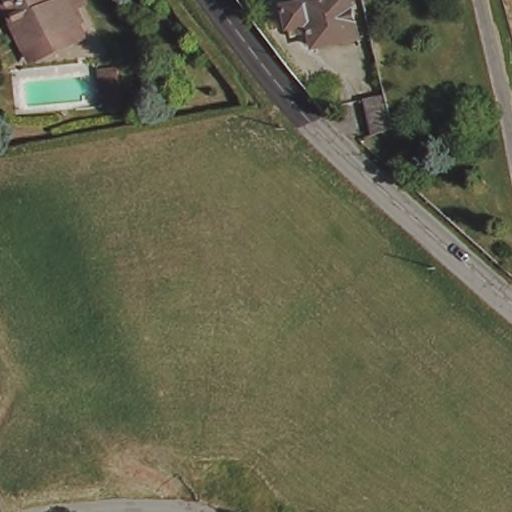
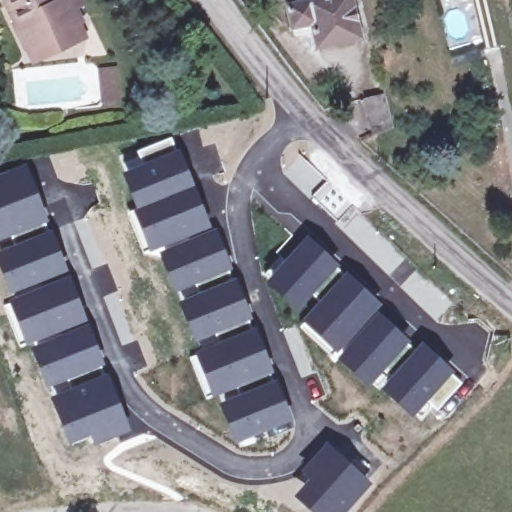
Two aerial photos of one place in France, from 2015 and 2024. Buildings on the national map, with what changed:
unchanged [(24,36),(17,35),(10,17),(12,11),(7,0),(67,0),(71,9),(77,22),(28,45),(24,36)]
unchanged [(302,20),(297,0),(360,0),(365,34),(327,39),(321,17),(302,20)]
unchanged [(118,59),(121,91),(102,92),(98,62),(118,59)]
unchanged [(397,125),(378,132),(371,97),(390,92),(397,125)]
new [(140,162),(134,150),(170,136),(175,148),(178,147),(211,229),(156,249),(147,252),(135,221),(120,172),(140,162)]
new [(335,220),(308,197),(283,173),(298,155),(325,179),(351,204),(335,220)]
new [(48,221),(0,239),(0,171),(25,161),(48,221)]
new [(211,229),(215,227),(230,269),(171,291),(156,249),(211,229)]
new [(67,271),(39,281),(8,293),(0,271),(0,249),(50,229),(67,271)]
new [(305,233),(338,264),(293,311),(263,281),(305,233)]
new [(345,270),(382,303),(376,310),(333,356),(298,320),(345,270)]
new [(40,286),(39,281),(67,271),(87,321),(28,345),(25,346),(6,300),(40,286)]
new [(235,277),(251,318),(193,341),(176,301),(235,277)]
new [(115,291),(135,341),(121,346),(101,297),(115,291)]
new [(376,310),(410,340),(388,363),(365,385),(333,356),(376,310)]
new [(87,321),(102,366),(45,387),(28,345),(87,321)]
new [(255,326),(273,372),(210,397),(191,352),(255,326)]
new [(421,340),(463,381),(436,411),(427,402),(412,418),(378,388),(421,340)]
new [(107,372),(131,431),(91,446),(87,437),(68,446),(48,396),(107,372)]
new [(275,378),(293,422),(232,445),(216,403),(275,378)]
new [(296,471),(325,440),(370,482),(342,512),(310,512),(291,495),(305,480),(296,471)]

